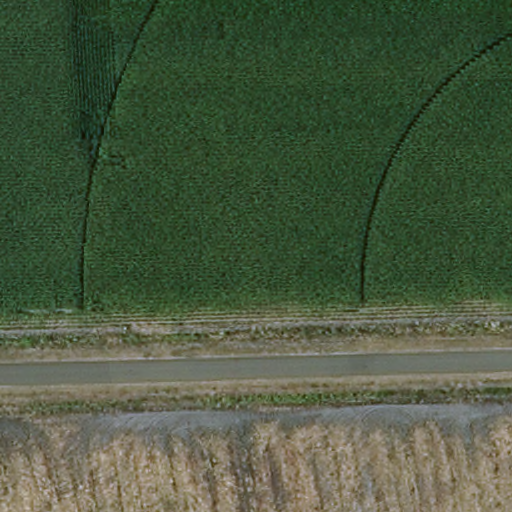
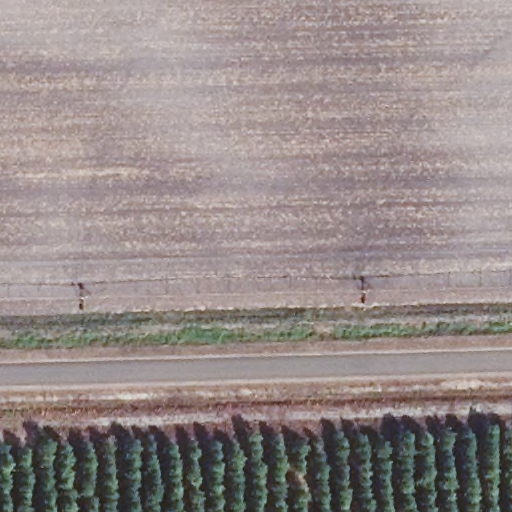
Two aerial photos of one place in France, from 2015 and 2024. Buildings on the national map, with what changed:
[]

